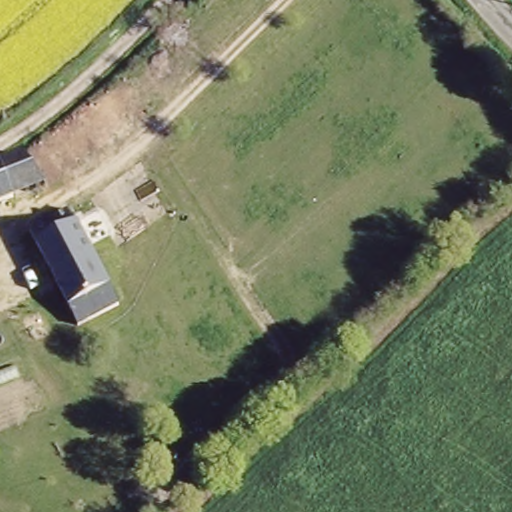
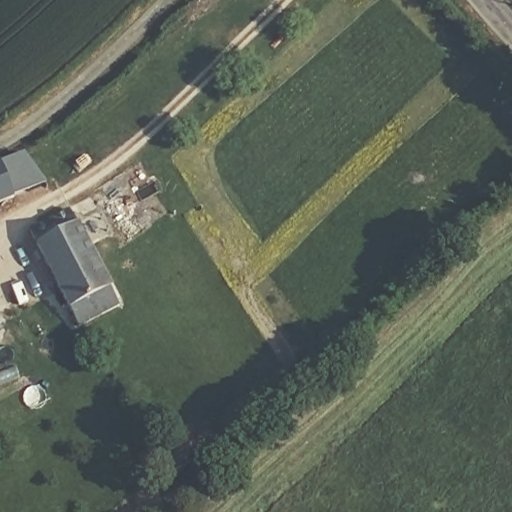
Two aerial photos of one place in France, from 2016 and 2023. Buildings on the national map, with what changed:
unchanged [(116,75),(123,84),(142,108),(55,174),(39,190),(12,159),(116,75)]
unchanged [(39,190),(23,199),(0,208),(0,164),(12,159),(39,190)]
unchanged [(23,236),(69,208),(102,262),(122,297),(80,322),(52,283),(23,236)]

